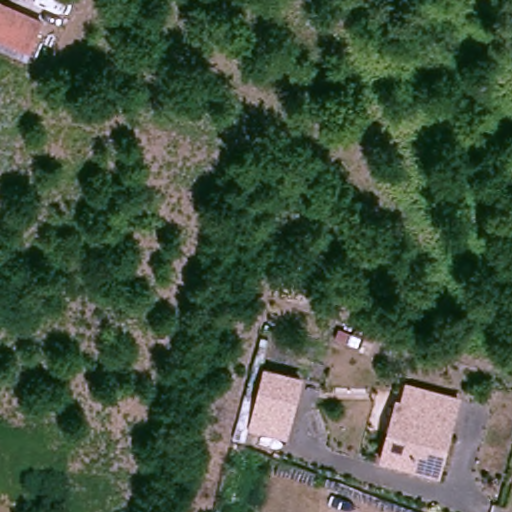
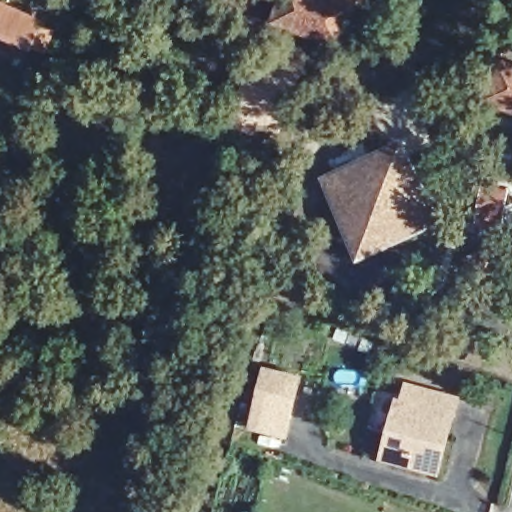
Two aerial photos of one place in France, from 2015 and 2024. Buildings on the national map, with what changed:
new [(278,26),(287,0),(345,0),(356,4),(342,50),(278,26)]
unchanged [(34,24),(20,50),(0,40),(0,6),(34,24)]
new [(498,56),(512,61),(512,111),(484,100),(498,56)]
new [(404,140),(442,221),(358,261),(319,177),(404,140)]
unchanged [(291,374),(276,432),(242,423),(257,365),(291,374)]
unchanged [(423,469),(373,456),(389,398),(394,400),(398,383),(449,397),(444,415),(429,471),(423,469)]

